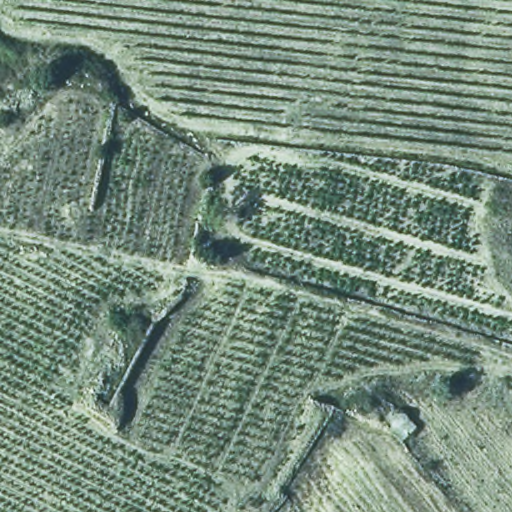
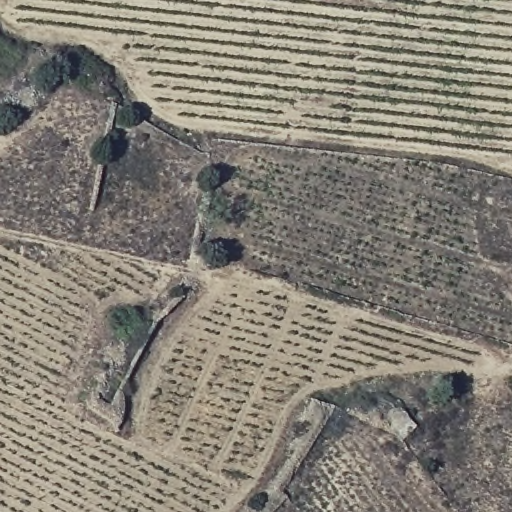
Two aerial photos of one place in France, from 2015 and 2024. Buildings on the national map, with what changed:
unchanged [(107,418),(91,410),(95,402),(111,410),(107,418)]

